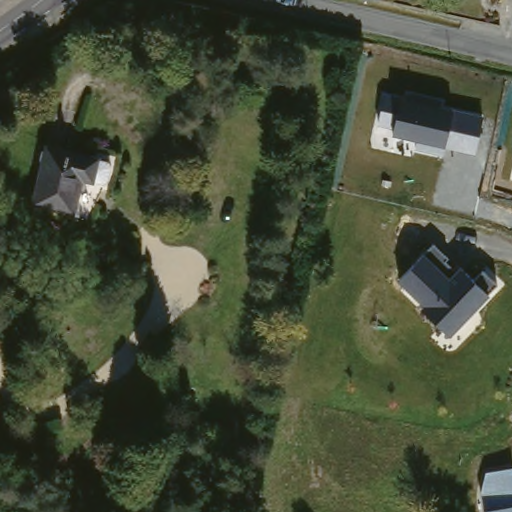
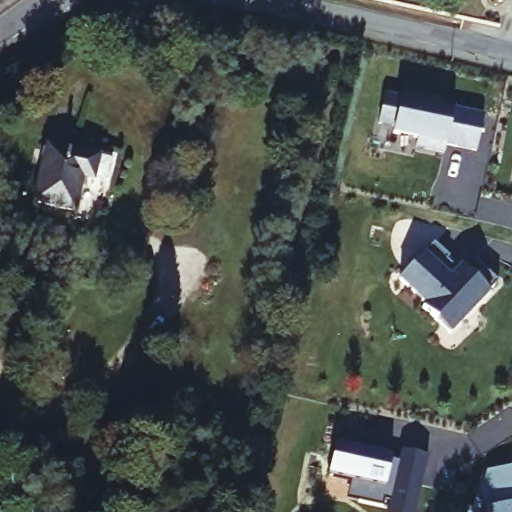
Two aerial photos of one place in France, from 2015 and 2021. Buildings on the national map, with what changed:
unchanged [(395,127),(376,123),(384,93),(401,98),(402,95),(453,107),(484,117),(476,152),(446,145),(444,157),(415,151),(417,140),(393,135),(395,127)]
unchanged [(38,136),(76,146),(77,137),(107,145),(100,179),(95,178),(81,213),(62,210),(64,203),(23,194),(38,136)]
unchanged [(423,308),(426,306),(398,278),(426,252),(435,243),(450,258),(447,263),(457,272),(461,268),(472,279),(483,268),(497,285),(490,293),(450,336),(423,308)]
new [(335,442),(390,455),(387,467),(397,469),(401,450),(426,456),(413,512),(386,512),(389,501),(383,500),(381,506),(358,500),(362,481),(328,473),(335,442)]
unchanged [(480,492),(486,472),(512,466),(512,512),(484,512),(480,492)]

